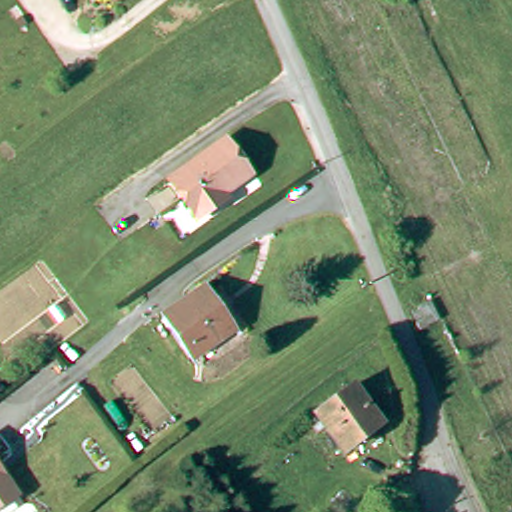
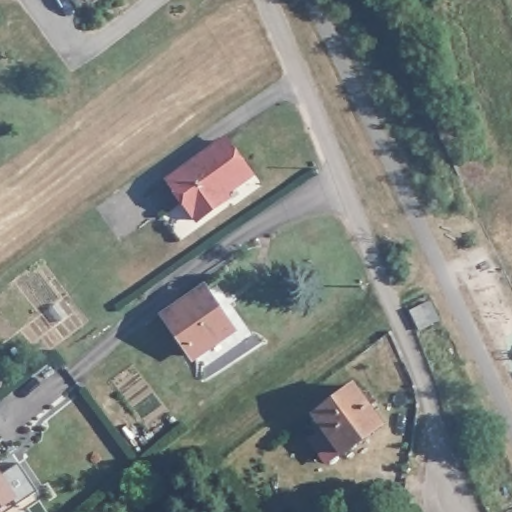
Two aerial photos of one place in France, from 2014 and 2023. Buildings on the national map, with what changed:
unchanged [(223,210),(202,226),(174,186),(230,146),(254,180),(229,197),(234,203),(223,210)]
unchanged [(197,362),(173,319),(212,295),(238,337),(197,362)]
unchanged [(350,390),(359,401),(367,397),(373,406),(366,410),(380,428),(343,457),(313,420),(350,390)]
unchanged [(16,490),(0,503),(0,469),(16,490)]

